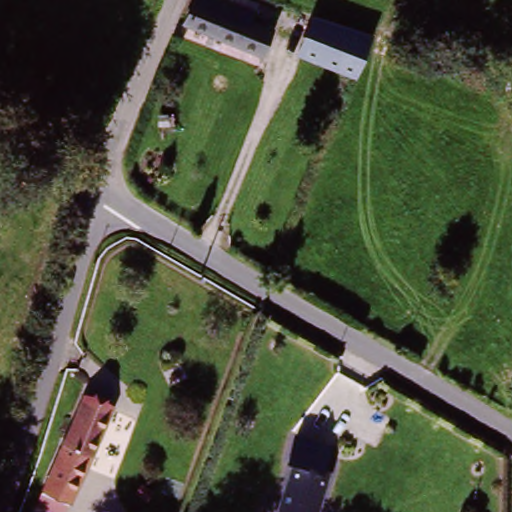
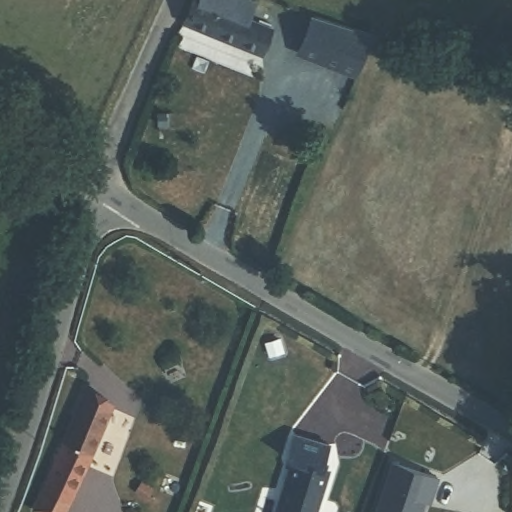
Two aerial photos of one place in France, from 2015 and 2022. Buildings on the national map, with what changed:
unchanged [(203,4),(205,0),(244,0),(254,4),(247,21),(267,29),(257,54),(187,25),(195,0),(203,4)]
unchanged [(309,19),(369,42),(355,77),(296,51),(309,19)]
unchanged [(39,499),(47,482),(90,391),(115,402),(72,493),(64,511),(39,499)]
unchanged [(334,445),(327,469),(334,471),(320,512),(281,512),(297,460),(292,459),(300,434),(334,445)]
new [(393,454),(438,469),(432,486),(427,484),(416,512),(373,512),(393,454)]

